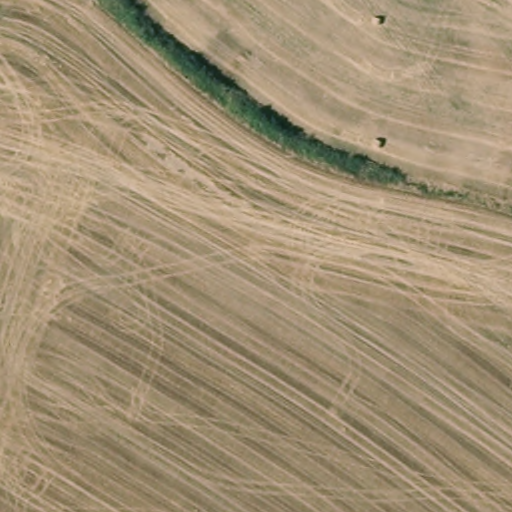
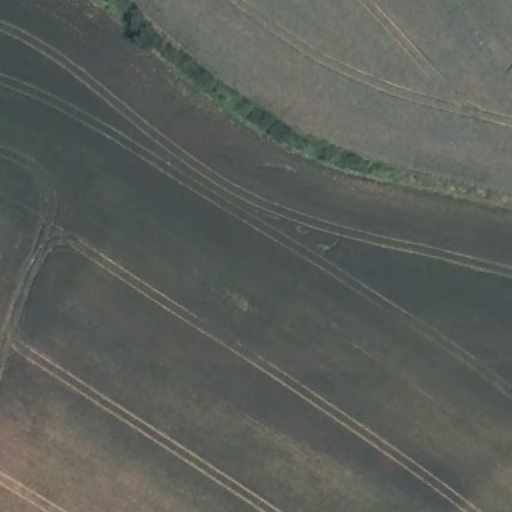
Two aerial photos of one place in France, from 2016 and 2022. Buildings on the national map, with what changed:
[]

